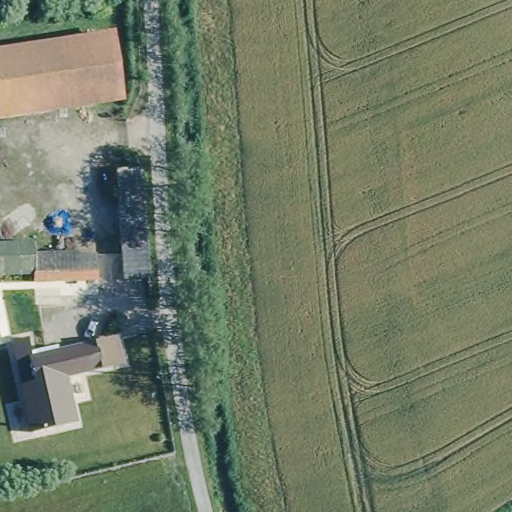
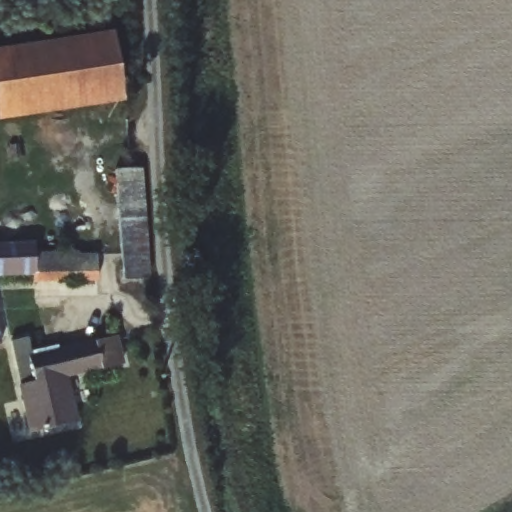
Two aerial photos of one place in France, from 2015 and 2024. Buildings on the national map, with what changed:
unchanged [(107,46),(113,87),(0,105),(0,63),(107,46)]
unchanged [(118,283),(114,172),(141,172),(144,279),(118,283)]
unchanged [(35,245),(36,255),(80,253),(80,257),(98,256),(99,281),(35,284),(35,276),(0,277),(0,247),(35,245)]
unchanged [(2,346),(0,346),(0,336),(2,346)]
unchanged [(125,365),(76,376),(67,378),(67,379),(78,426),(34,436),(23,388),(19,372),(18,365),(13,345),(29,341),(34,361),(120,342),(124,363),(125,365)]

